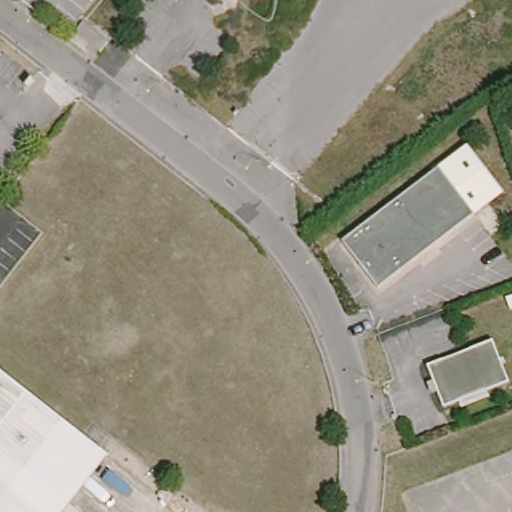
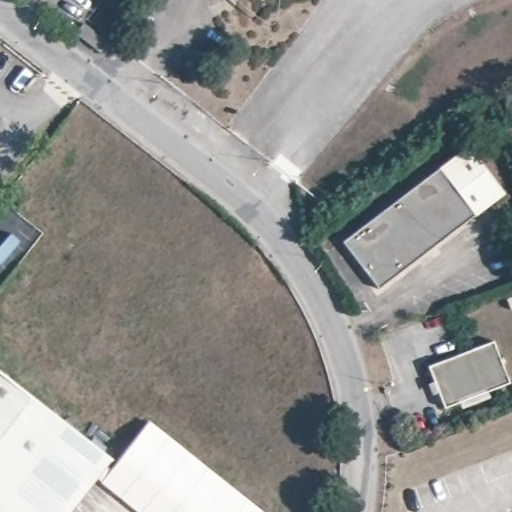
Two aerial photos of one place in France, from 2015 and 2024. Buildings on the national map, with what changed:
unchanged [(254,0),(261,0),(260,3),(254,0)]
unchanged [(106,45),(98,55),(74,36),(82,26),(106,45)]
unchanged [(465,144),(503,193),(475,214),(439,166),(465,144)]
unchanged [(475,214),(436,244),(432,238),(413,253),(417,259),(378,289),(342,240),(439,166),(475,214)]
unchanged [(471,411),(468,403),(452,408),(447,394),(438,397),(434,386),(443,383),(437,366),(494,344),(510,387),(497,392),(499,400),(471,411)]
unchanged [(103,464),(65,512),(0,512),(0,382),(103,464)]
new [(264,512),(139,512),(101,482),(148,421),(264,512)]

